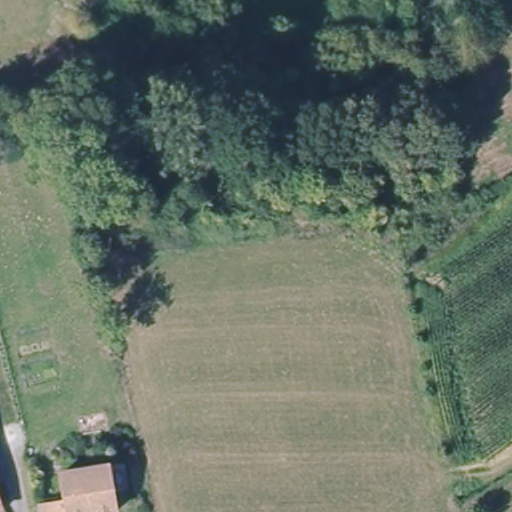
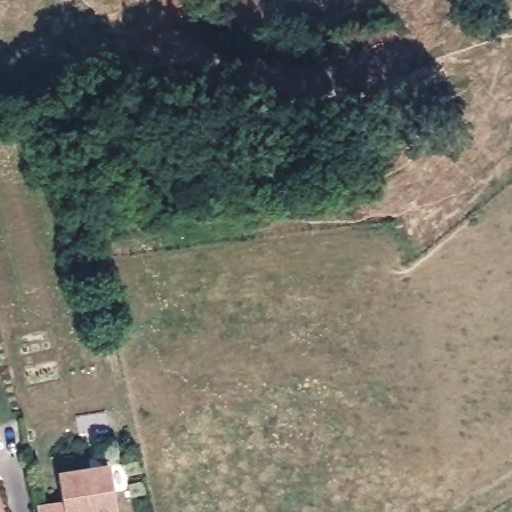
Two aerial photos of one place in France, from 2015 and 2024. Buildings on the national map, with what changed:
unchanged [(67,505),(62,475),(109,469),(115,512),(38,512),(37,508),(67,505)]

